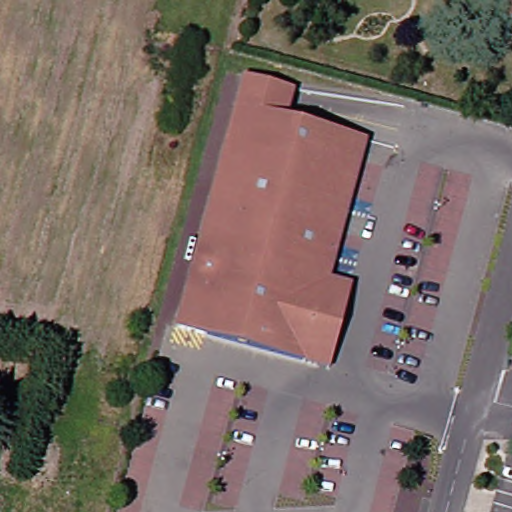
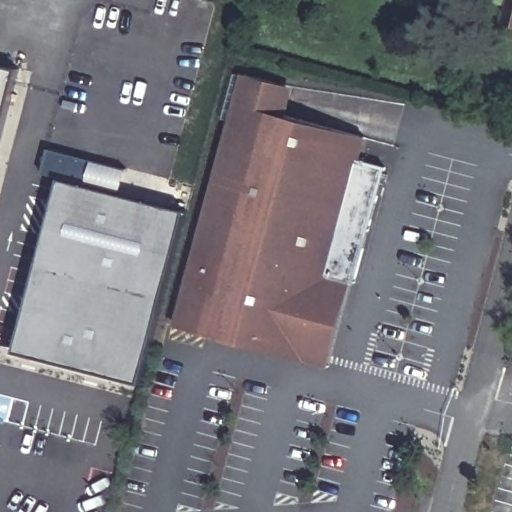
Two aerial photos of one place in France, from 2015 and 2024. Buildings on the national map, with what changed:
new [(0,67),(18,71),(0,139),(0,67)]
unchanged [(242,75),(281,86),(274,115),(362,137),(326,277),(304,361),(176,327),(242,75)]
new [(139,386),(13,353),(59,181),(40,175),(46,150),(126,170),(119,196),(186,211),(139,386)]
unchanged [(326,277),(349,283),(327,367),(304,361),(326,277)]

